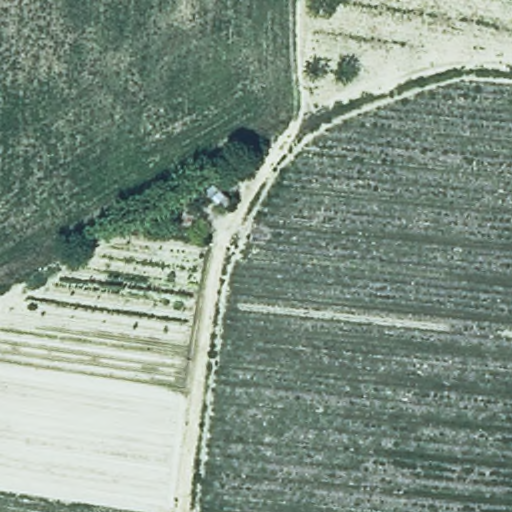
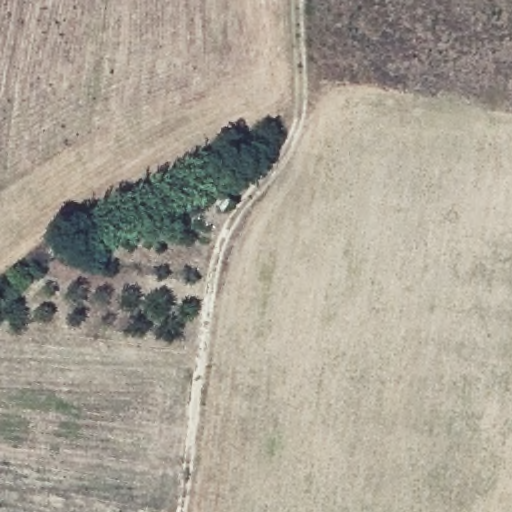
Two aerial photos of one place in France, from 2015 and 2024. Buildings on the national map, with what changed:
unchanged [(210,185),(223,195),(212,205),(202,193),(210,185)]

